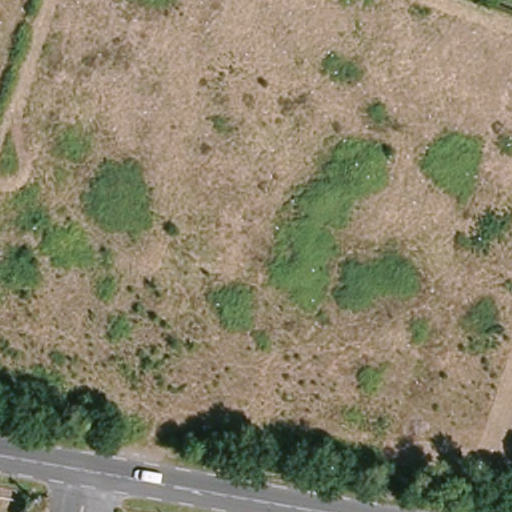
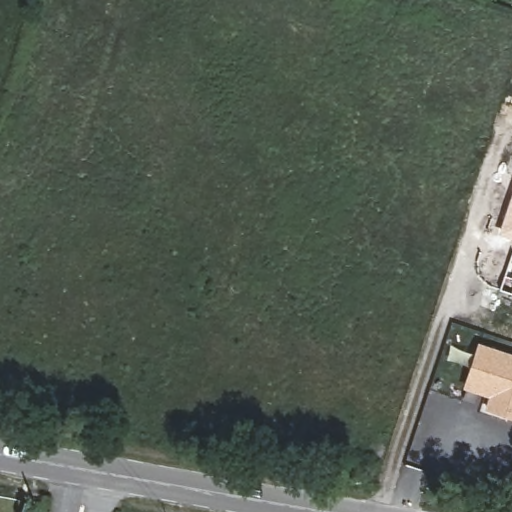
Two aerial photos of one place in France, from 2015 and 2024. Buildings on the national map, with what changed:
new [(497,234),(512,192),(512,239),(497,234)]
new [(477,348),(512,359),(512,419),(485,411),(490,397),(463,389),(477,348)]

